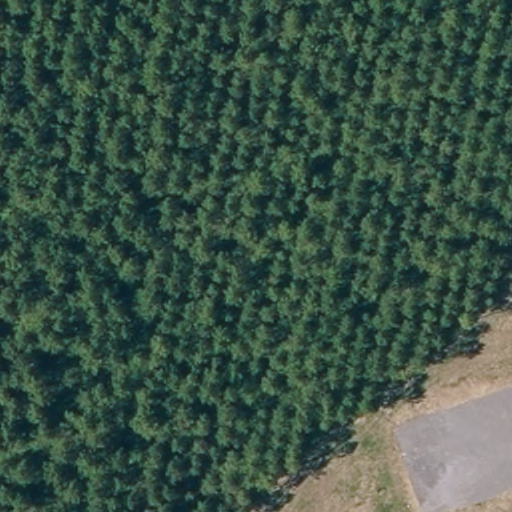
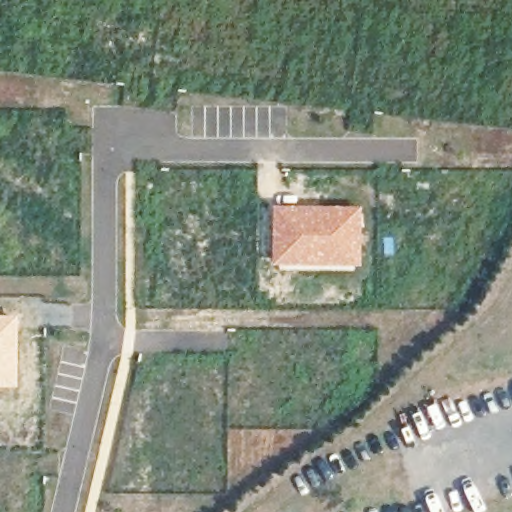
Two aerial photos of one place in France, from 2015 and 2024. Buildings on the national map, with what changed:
new [(272,206),(362,206),(361,267),(271,267),(272,206)]
new [(17,388),(0,388),(0,316),(18,316),(17,388)]

